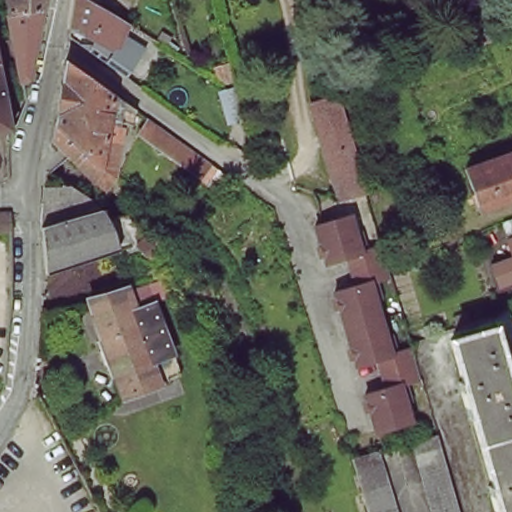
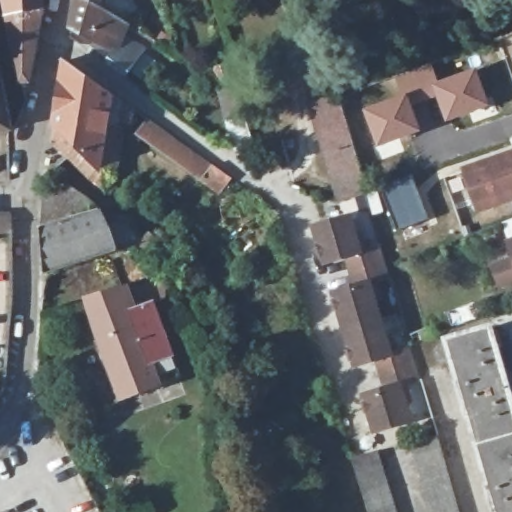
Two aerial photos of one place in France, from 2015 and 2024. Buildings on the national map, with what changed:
unchanged [(22,73),(13,23),(7,0),(42,0),(29,74),(22,73)]
unchanged [(103,60),(106,52),(68,27),(72,0),(81,0),(115,20),(125,26),(110,62),(103,60)]
unchanged [(489,20),(495,36),(478,43),(472,25),(489,20)]
unchanged [(392,50),(404,46),(402,41),(418,35),(427,63),(411,69),(400,74),(392,50)]
unchanged [(218,73),(216,62),(230,59),(238,85),(218,73)]
unchanged [(13,127),(13,129),(0,132),(0,60),(13,127)]
unchanged [(362,79),(358,66),(375,61),(379,72),(362,79)]
unchanged [(103,165),(55,122),(66,62),(137,111),(133,118),(116,112),(110,138),(103,165)]
new [(433,63),(439,81),(477,67),(492,106),(445,122),(437,100),(415,109),(409,92),(399,95),(393,78),(433,63)]
unchanged [(347,194),(341,195),(340,192),(312,100),(338,92),(340,97),(368,189),(347,194)]
new [(399,95),(409,92),(415,109),(424,130),(377,149),(364,107),(399,95)]
unchanged [(124,142),(119,177),(105,190),(52,140),(55,122),(103,165),(110,138),(124,142)]
unchanged [(151,122),(215,167),(206,181),(142,135),(151,122)]
unchanged [(2,171),(0,171),(0,157),(1,157),(2,171)]
unchanged [(470,174),(512,158),(512,200),(482,211),(470,174)]
new [(411,172),(431,220),(399,232),(382,183),(411,172)]
unchanged [(46,191),(77,185),(102,199),(108,217),(120,212),(121,217),(130,215),(133,217),(143,240),(154,237),(160,256),(145,259),(138,242),(44,274),(42,224),(46,191)]
unchanged [(13,212),(13,231),(0,231),(0,213),(13,212)]
unchanged [(375,280),(380,297),(375,298),(386,337),(391,335),(396,352),(411,348),(420,378),(405,383),(410,400),(405,402),(410,421),(375,431),(364,393),(386,387),(377,358),(356,365),(335,291),(356,285),(348,256),(327,262),(316,225),(351,215),(357,234),(362,232),(366,250),(381,245),(390,276),(375,280)]
unchanged [(490,260),(511,252),(505,237),(509,237),(503,222),(512,218),(512,283),(501,287),(490,260)]
unchanged [(129,315),(150,307),(173,380),(116,401),(82,302),(94,299),(121,291),(129,315)]
unchanged [(448,335),(493,322),(512,386),(512,512),(500,512),(448,335)]
unchanged [(457,512),(426,512),(405,435),(432,427),(457,512)]
unchanged [(361,459),(380,452),(398,512),(377,512),(361,459)]

